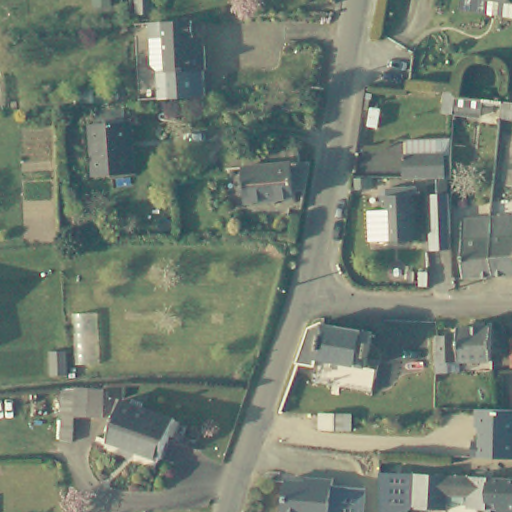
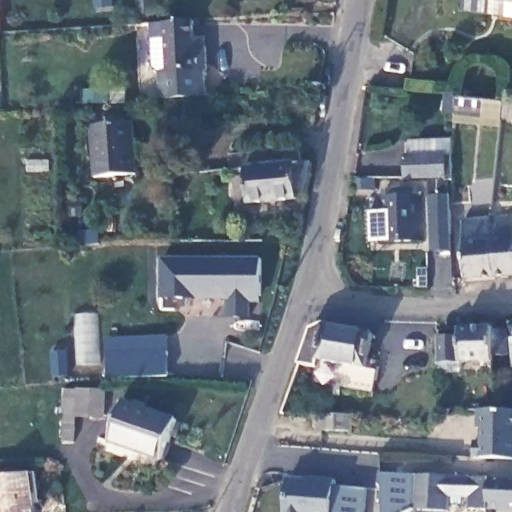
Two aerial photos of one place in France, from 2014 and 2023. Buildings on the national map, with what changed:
unchanged [(94,9),(95,0),(112,0),(112,10),(94,9)]
unchanged [(467,4),(468,0),(512,0),(512,10),(467,4)]
unchanged [(193,37),(204,36),(205,49),(209,95),(173,95),(166,35),(146,36),(145,25),(192,21),(193,37)]
unchanged [(454,115),(441,114),(443,94),(444,94),(455,95),(481,99),(483,99),(481,118),(454,115)]
unchanged [(502,119),(504,101),(512,102),(512,120),(502,119)]
unchanged [(40,116),(39,109),(55,108),(56,115),(40,116)]
unchanged [(135,174),(92,177),(89,125),(132,123),(135,174)]
unchanged [(440,185),(440,182),(398,184),(397,161),(403,160),(403,145),(448,144),(446,185),(440,185)]
unchanged [(296,201),(296,209),(246,213),(244,188),(229,189),(229,179),(228,164),(299,158),(299,172),(310,171),(310,176),(305,201),(296,201)]
unchanged [(81,217),(67,218),(67,200),(80,199),(81,217)]
unchanged [(367,214),(377,214),(377,201),(421,200),(423,245),(384,248),(367,248),(367,214)]
unchanged [(431,248),(431,208),(451,208),(450,248),(450,263),(431,263),(431,248)]
unchanged [(494,280),(491,223),(512,221),(512,280),(494,280)]
unchanged [(464,282),(462,224),(491,223),(494,280),(464,282)]
new [(260,304),(250,304),(250,319),(228,318),(228,300),(159,299),(160,258),(259,258),(260,304)]
unchanged [(511,334),(510,319),(512,319),(512,333),(511,334)]
unchanged [(373,377),(315,366),(298,363),(310,327),(321,324),(324,325),(373,335),(367,369),(374,370),(373,377)]
unchanged [(459,334),(460,326),(493,326),(493,328),(506,329),(507,353),(494,353),(495,362),(450,362),(450,372),(438,373),(438,334),(459,334)]
new [(167,377),(106,378),(105,337),(165,335),(167,377)]
unchanged [(512,338),(512,369),(511,338),(512,338)]
unchanged [(70,375),(51,376),(50,352),(69,351),(70,375)]
unchanged [(97,412),(70,410),(73,381),(100,384),(97,412)]
unchanged [(155,456),(102,437),(117,394),(170,414),(155,456)]
unchanged [(437,405),(452,406),(451,421),(436,419),(437,405)]
unchanged [(512,411),(512,458),(471,456),(471,440),(479,441),(480,428),(475,428),(478,409),(512,411)]
unchanged [(320,430),(321,414),(352,416),(351,431),(320,430)]
unchanged [(495,484),(512,485),(512,512),(467,512),(467,502),(447,501),(447,512),(412,512),(413,479),(474,482),(475,464),(496,464),(495,484)]
unchanged [(332,485),(368,489),(366,512),(283,512),(287,481),(305,481),(305,477),(333,478),(332,485)]
unchanged [(412,512),(384,512),(382,477),(413,479),(412,512)]

